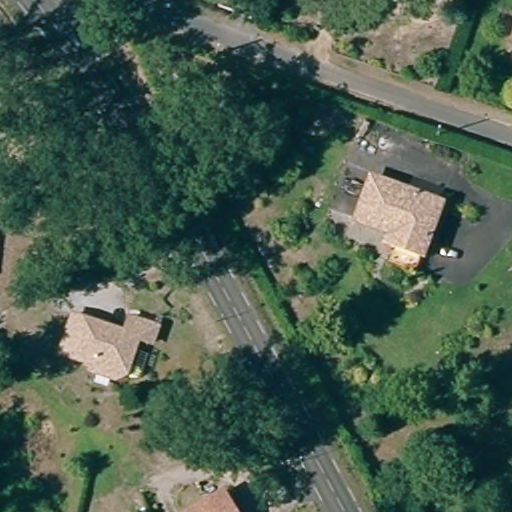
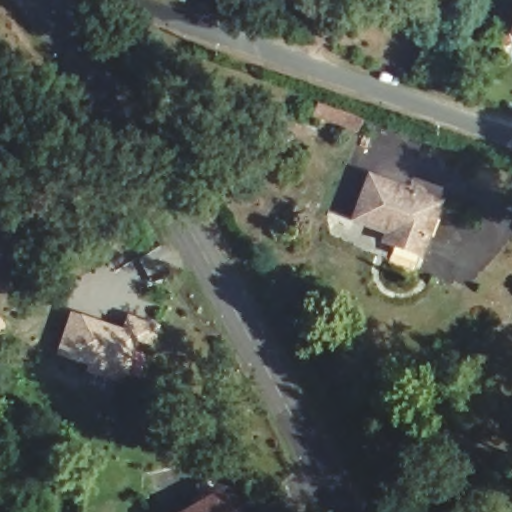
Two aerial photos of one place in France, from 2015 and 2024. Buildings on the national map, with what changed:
unchanged [(385,255),(391,240),(384,236),(387,227),(354,215),(369,174),(438,199),(419,250),(414,265),(385,255)]
unchanged [(119,376),(93,368),(96,361),(64,350),(76,312),(108,322),(128,329),(133,314),(160,323),(155,340),(140,335),(128,370),(119,376)]
unchanged [(228,512),(191,512),(219,496),(228,512)]

